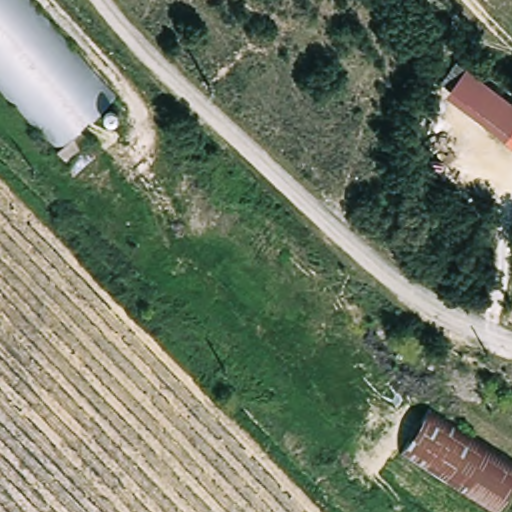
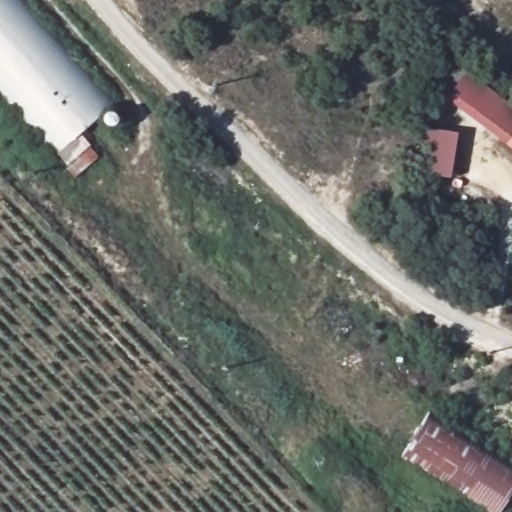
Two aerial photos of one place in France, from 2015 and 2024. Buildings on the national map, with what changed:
unchanged [(113,100),(77,134),(88,146),(62,170),(0,100),(0,0),(24,0),(102,88),(113,100)]
unchanged [(506,146),(446,99),(448,96),(439,89),(457,65),(512,105),(512,141),(511,140),(506,146)]
new [(459,134),(450,179),(427,174),(429,160),(420,159),(426,128),(459,134)]
unchanged [(403,461),(427,419),(512,469),(512,491),(499,512),(486,512),(403,461)]

